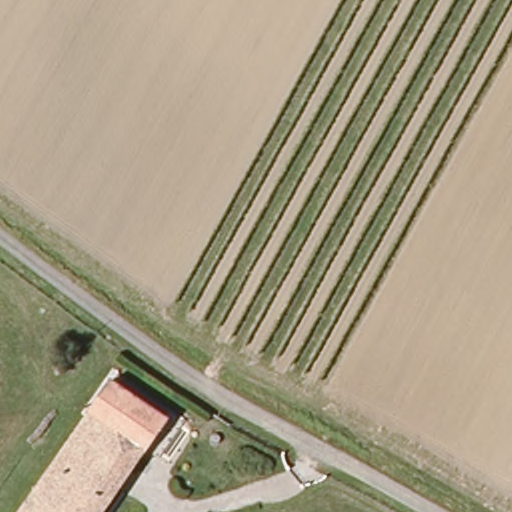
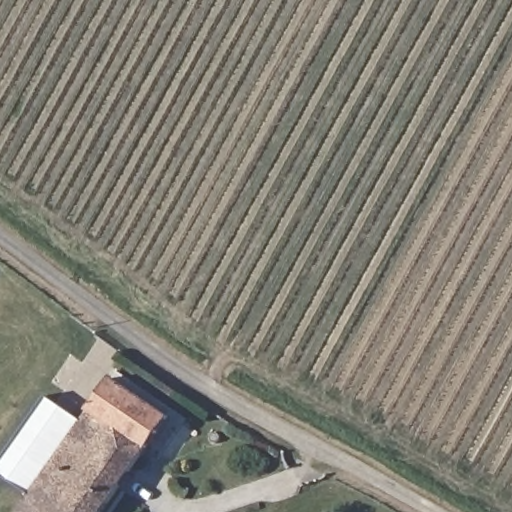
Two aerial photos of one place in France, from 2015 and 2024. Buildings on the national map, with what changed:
unchanged [(105,512),(27,512),(113,388),(166,423),(105,512)]
new [(0,467),(48,397),(88,424),(37,498),(0,473),(0,467)]

